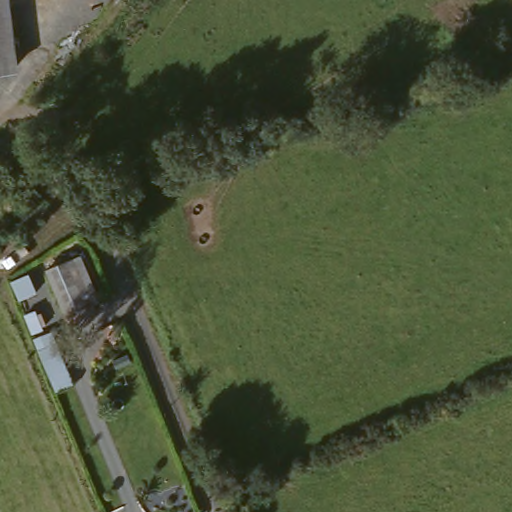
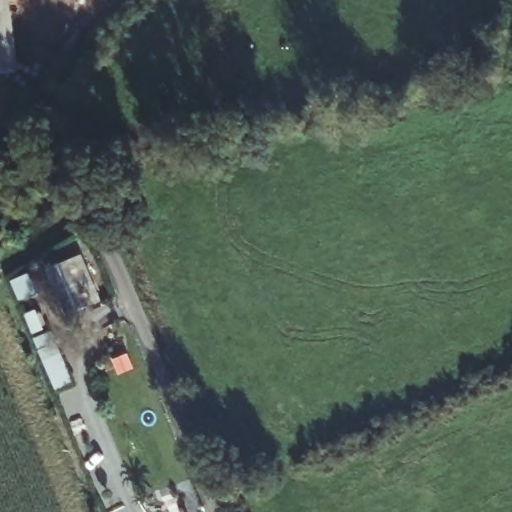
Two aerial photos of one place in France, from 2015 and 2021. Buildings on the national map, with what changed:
unchanged [(18,72),(0,74),(0,0),(10,0),(18,72)]
unchanged [(75,260),(94,306),(61,320),(42,274),(75,260)]
unchanged [(36,294),(19,300),(12,281),(28,274),(36,294)]
unchanged [(42,330),(34,333),(27,313),(36,310),(42,330)]
unchanged [(56,343),(39,350),(34,338),(51,331),(56,343)]
unchanged [(74,384),(56,391),(43,359),(60,352),(74,384)]

